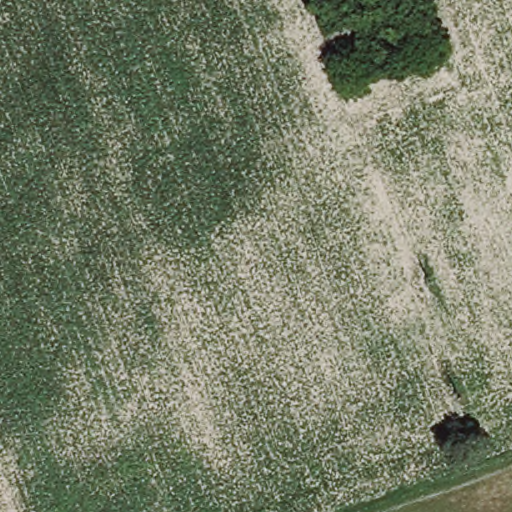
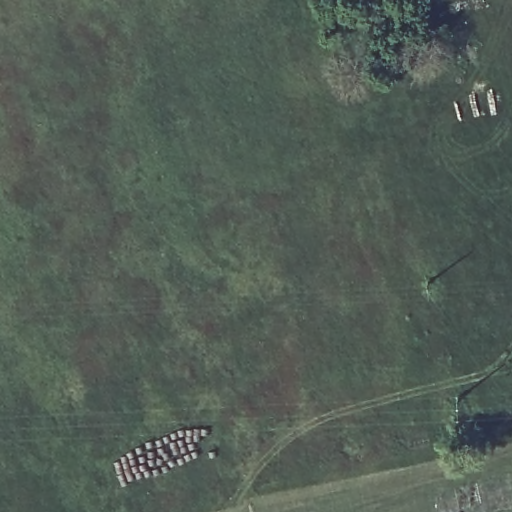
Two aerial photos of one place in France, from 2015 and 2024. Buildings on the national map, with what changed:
[]

